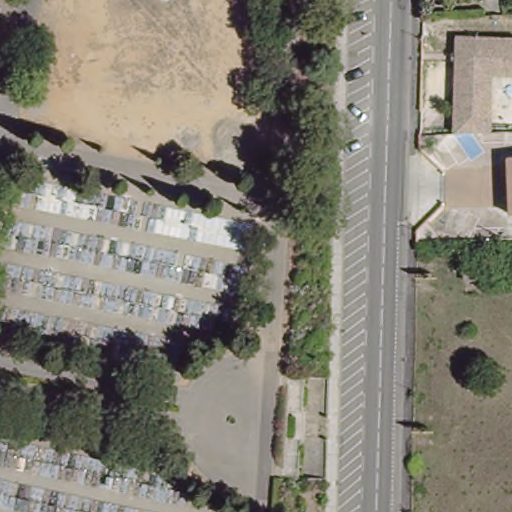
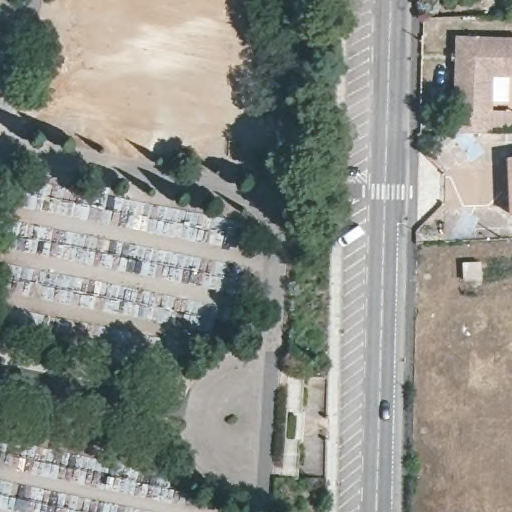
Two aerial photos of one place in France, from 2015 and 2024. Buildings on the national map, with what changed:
unchanged [(512,38),(512,75),(510,74),(487,74),(486,104),(486,132),(449,134),(451,37),(512,38)]
unchanged [(505,162),(512,162),(512,220),(510,220),(505,162)]

